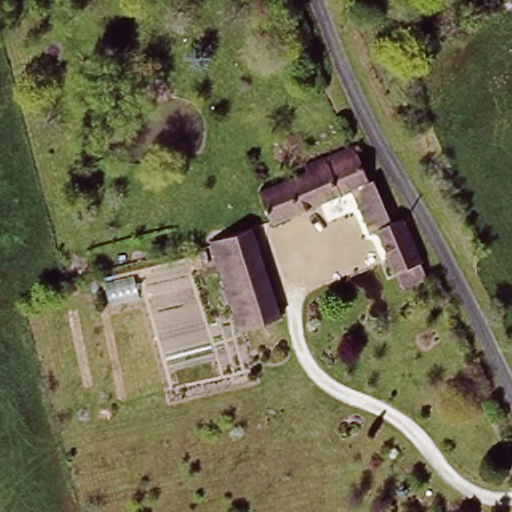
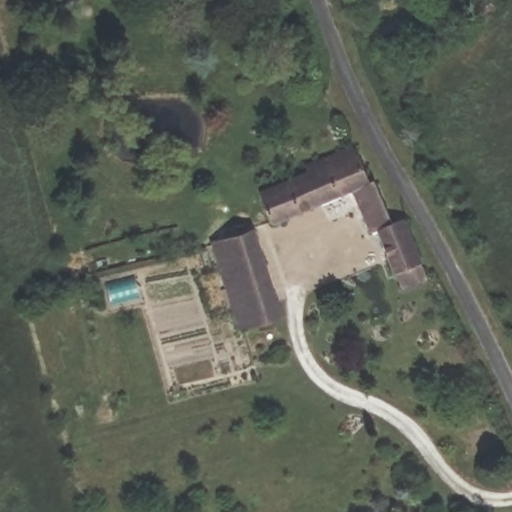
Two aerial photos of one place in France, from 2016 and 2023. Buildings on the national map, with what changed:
unchanged [(371,186),(375,185),(393,227),(408,222),(431,285),(403,295),(380,233),(370,237),(352,192),(275,222),(263,190),(315,170),(313,162),(355,146),(371,186)]
unchanged [(207,242),(248,230),(275,320),(235,332),(207,242)]

